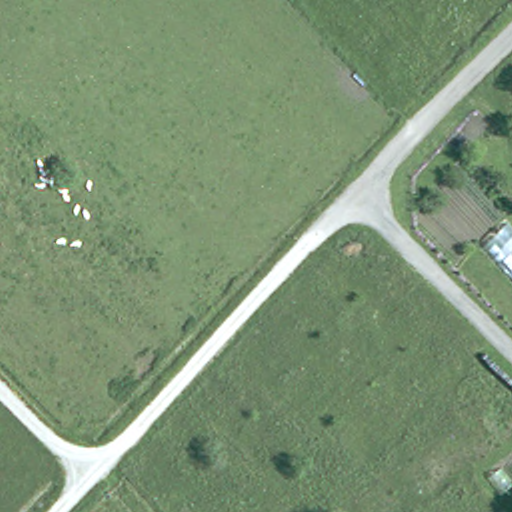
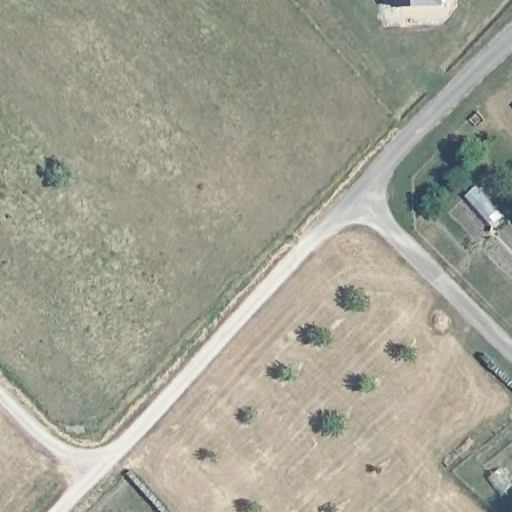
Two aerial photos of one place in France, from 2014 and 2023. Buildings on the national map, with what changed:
new [(393,6),(393,0),(446,0),(447,5),(393,6)]

